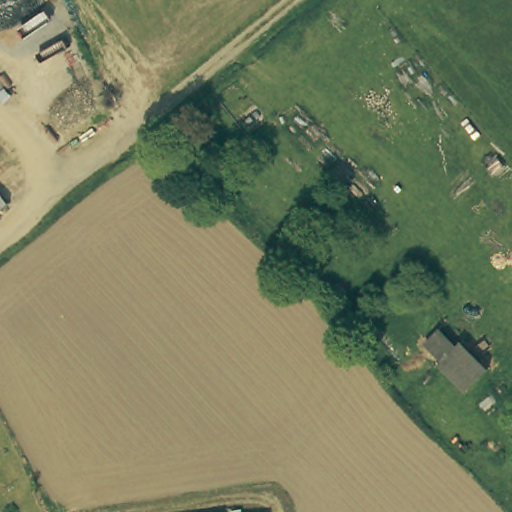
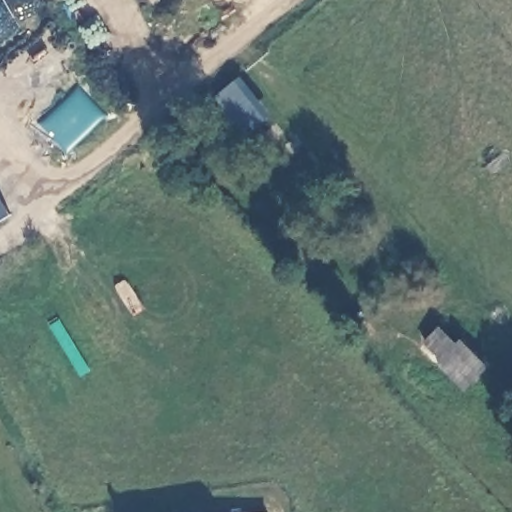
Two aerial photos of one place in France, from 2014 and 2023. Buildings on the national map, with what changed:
new [(249,137),(214,100),(241,76),(274,114),(249,137)]
new [(9,215),(0,221),(0,199),(9,215)]

